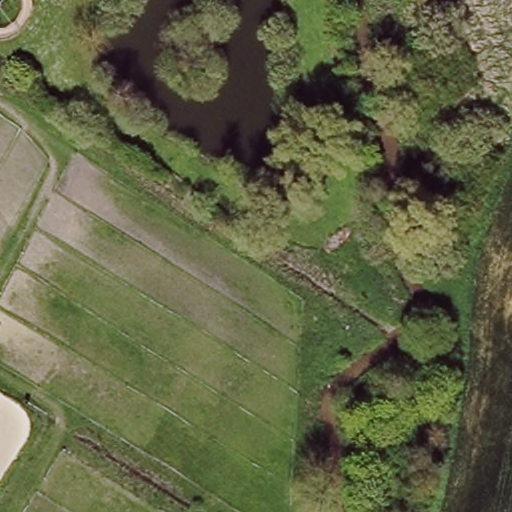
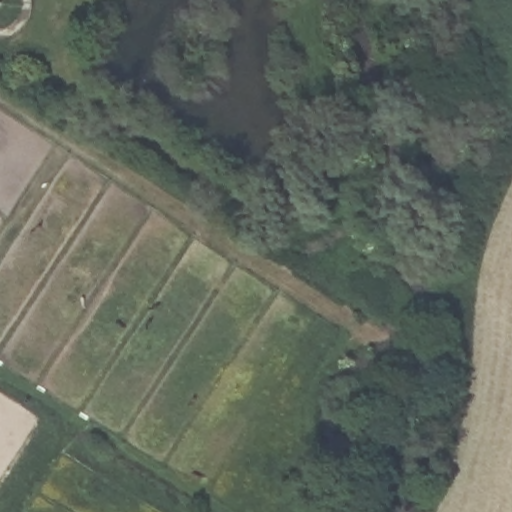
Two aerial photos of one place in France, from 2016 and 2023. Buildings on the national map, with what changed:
unchanged [(32,21),(23,32),(8,40),(0,41),(0,29),(6,29),(14,24),(23,8),(22,0),(33,0),(34,7),(32,21)]

